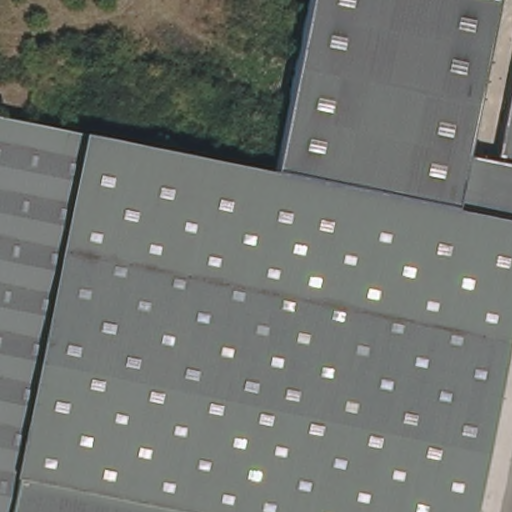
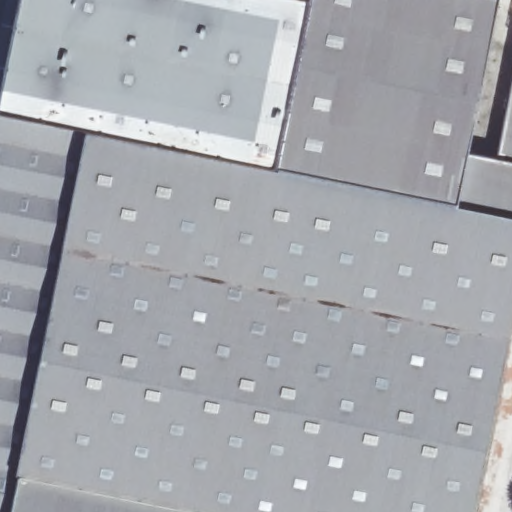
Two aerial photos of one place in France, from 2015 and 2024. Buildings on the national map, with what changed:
new [(137,143),(0,115),(23,0),(310,0),(275,171),(137,143)]
unchanged [(472,153),(501,158),(512,103),(512,219),(275,171),(310,0),(451,0),(498,10),(472,153)]
new [(451,0),(500,0),(498,10),(451,0)]
unchanged [(275,171),(512,219),(512,313),(472,512),(0,512),(0,117),(0,115),(137,143),(275,171)]

